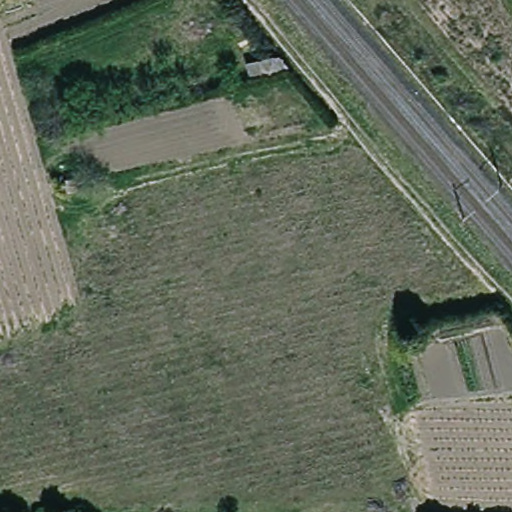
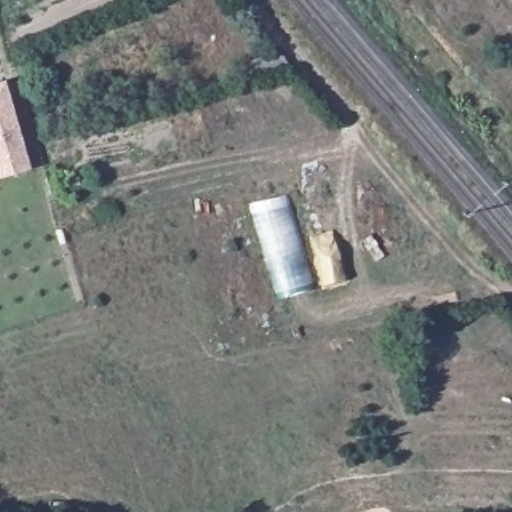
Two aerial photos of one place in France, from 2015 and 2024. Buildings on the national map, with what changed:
unchanged [(250,59),(288,50),(294,66),(255,76),(250,59)]
new [(30,168),(0,178),(0,82),(5,80),(30,168)]
new [(287,195),(316,289),(279,300),(249,205),(287,195)]

